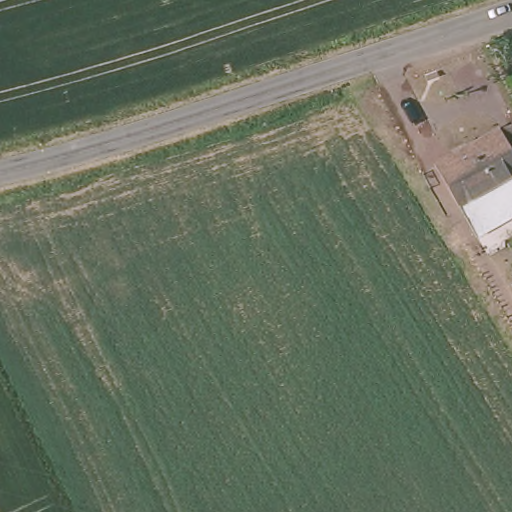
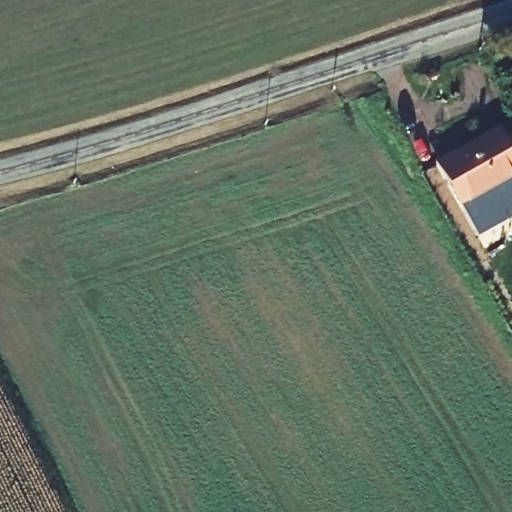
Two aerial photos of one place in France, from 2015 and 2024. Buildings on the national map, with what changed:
unchanged [(512,214),(470,238),(454,208),(439,217),(415,174),(430,166),(429,164),(495,128),(495,130),(510,122),(512,126),(512,214)]

